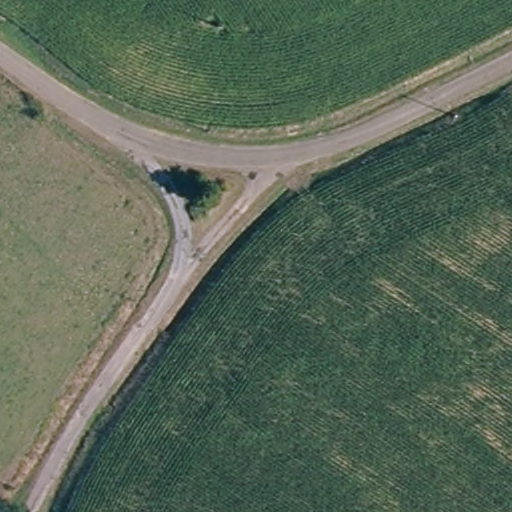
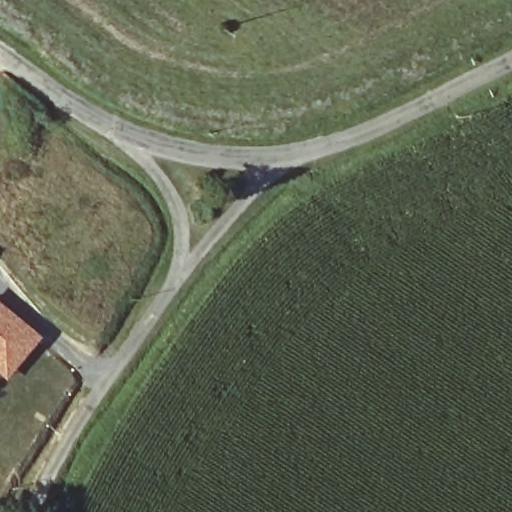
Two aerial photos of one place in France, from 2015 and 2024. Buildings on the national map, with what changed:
new [(40,337),(3,381),(0,379),(0,303),(40,337)]

